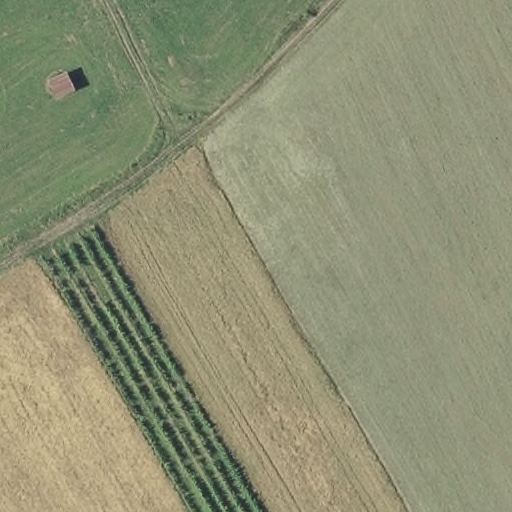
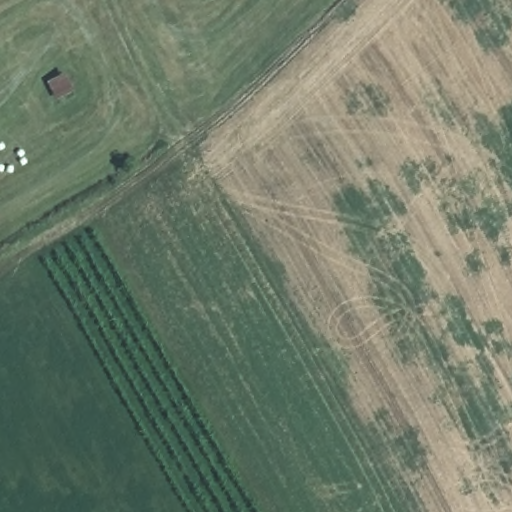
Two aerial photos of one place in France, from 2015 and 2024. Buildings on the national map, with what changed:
unchanged [(64,72),(76,92),(56,102),(47,84),(64,72)]

